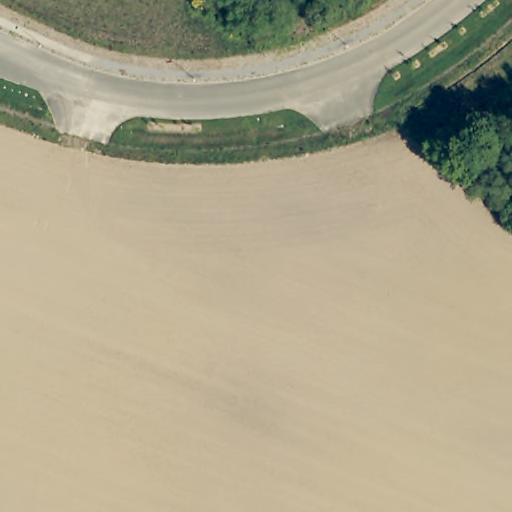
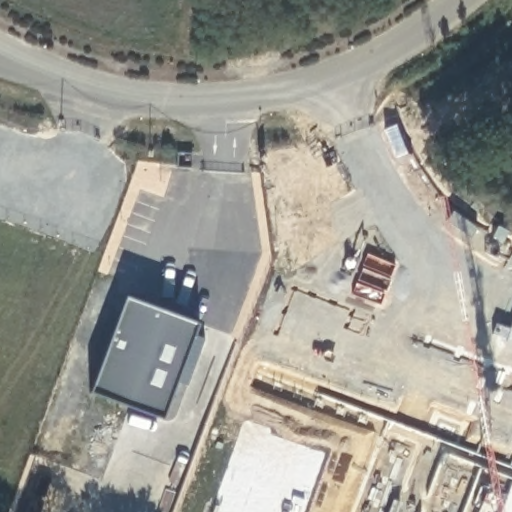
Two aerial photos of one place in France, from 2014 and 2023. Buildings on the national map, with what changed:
new [(164,420),(91,393),(126,297),(199,324),(164,420)]

